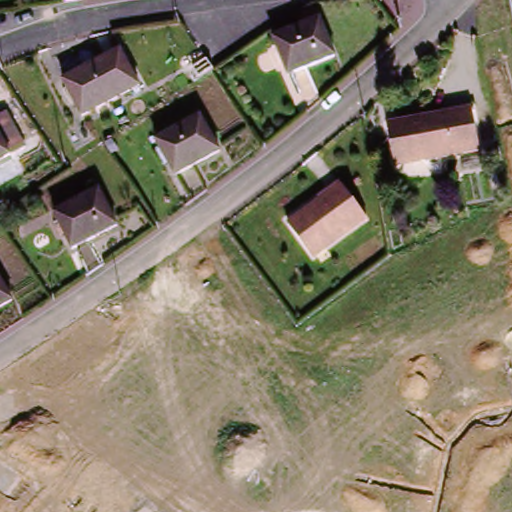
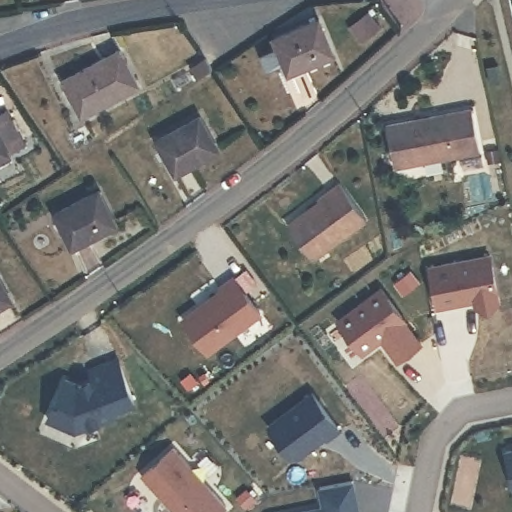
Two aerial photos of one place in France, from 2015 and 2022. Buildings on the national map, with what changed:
unchanged [(288,72),(274,37),(319,18),(333,53),(288,72)]
unchanged [(198,50),(206,62),(177,81),(170,70),(198,50)]
unchanged [(119,54),(136,88),(81,114),(65,81),(119,54)]
unchanged [(389,123),(471,111),(477,155),(394,167),(389,123)]
unchanged [(207,118),(224,154),(179,177),(161,140),(207,118)]
unchanged [(1,162),(0,163),(0,160),(1,162)]
unchanged [(343,184),(364,215),(312,253),(294,228),(323,206),(319,201),(343,184)]
unchanged [(120,224),(76,246),(59,210),(102,188),(120,224)]
new [(494,257),(502,302),(492,311),(479,307),(478,302),(441,309),(433,268),(494,257)]
new [(259,285),(247,293),(263,315),(210,355),(181,318),(219,291),(217,287),(233,274),(234,276),(245,267),(259,285)]
new [(384,288),(409,321),(407,324),(423,346),(400,363),(384,340),(364,355),(339,321),(384,288)]
unchanged [(0,313),(0,290),(8,308),(0,313)]
new [(68,378),(83,385),(98,379),(93,369),(123,358),(139,402),(115,411),(117,416),(78,430),(50,417),(68,378)]
new [(340,427),(294,462),(266,425),(312,389),(340,427)]
new [(229,505),(221,512),(178,512),(144,474),(176,445),(229,505)]
new [(512,448),(512,477),(506,449),(512,448)]
new [(324,487),(356,482),(362,512),(310,512),(328,508),(324,487)]

